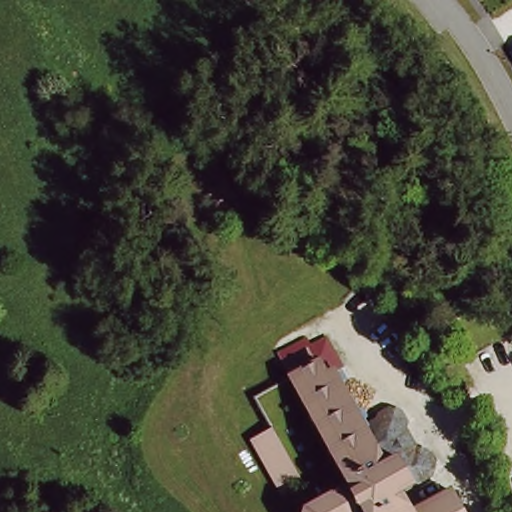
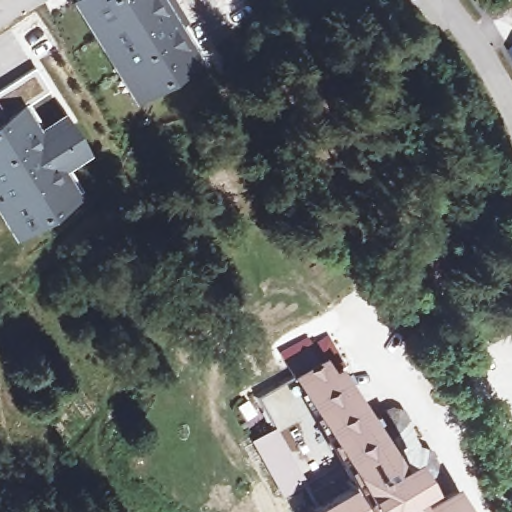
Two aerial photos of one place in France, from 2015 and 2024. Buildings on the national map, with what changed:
new [(184,26),(204,56),(200,60),(134,105),(68,0),(174,0),(188,23),(184,26)]
new [(90,156),(68,170),(83,195),(80,197),(12,240),(0,221),(0,90),(35,68),(50,91),(27,105),(41,126),(63,114),(90,156)]
unchanged [(325,362),(331,358),(361,411),(368,407),(370,400),(380,394),(393,396),(399,406),(398,420),(408,435),(419,433),(421,435),(431,452),(429,463),(400,480),(413,501),(450,480),(469,512),(377,512),(373,505),(365,509),(361,502),(343,512),(308,512),(306,508),(313,500),(355,475),(292,365),(284,350),(292,345),(311,336),(325,362)]
unchanged [(272,430),(303,485),(285,496),(253,440),(272,430)]

